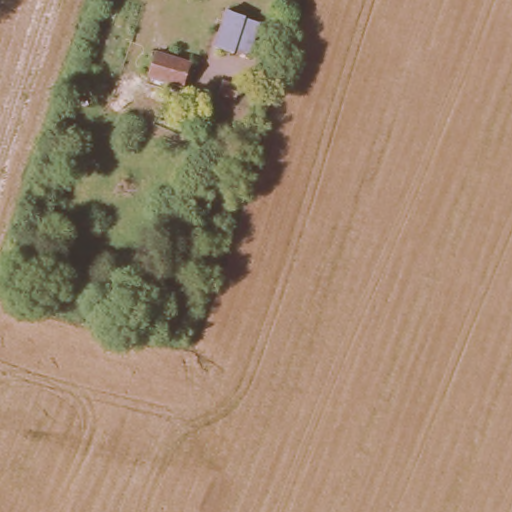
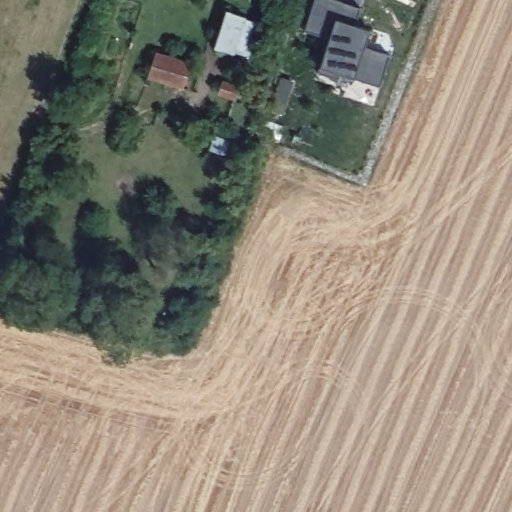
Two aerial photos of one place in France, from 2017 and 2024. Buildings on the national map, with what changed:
new [(360,8),(355,25),(370,30),(365,47),(390,55),(380,86),(340,73),(338,79),(319,73),(330,39),(305,31),(315,0),(335,0),(360,8)]
unchanged [(225,11),(250,18),(238,58),(215,52),(225,11)]
unchanged [(187,59),(178,89),(137,81),(150,46),(187,59)]

